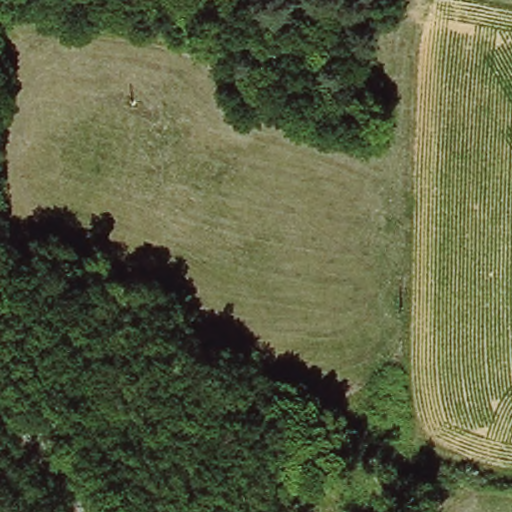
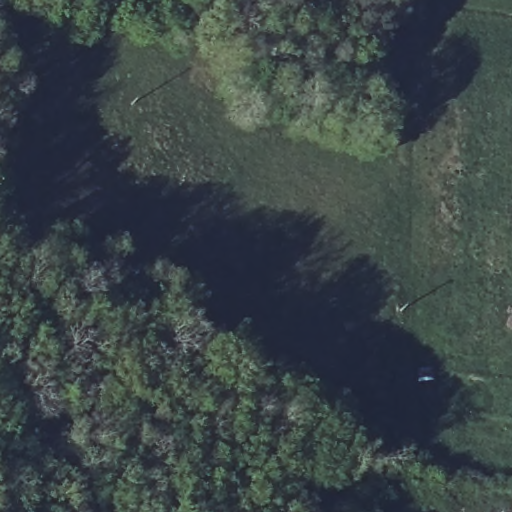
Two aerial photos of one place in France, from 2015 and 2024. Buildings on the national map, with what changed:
[]

